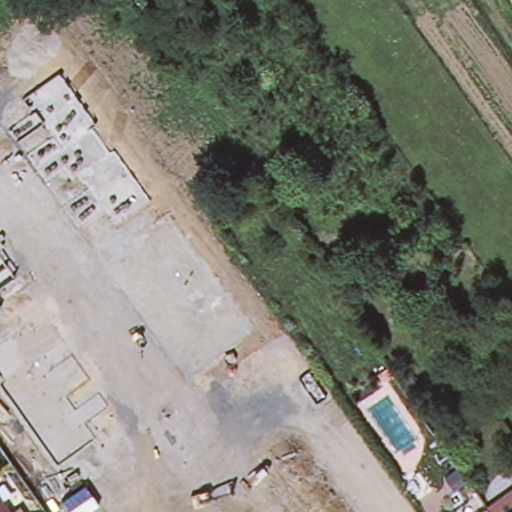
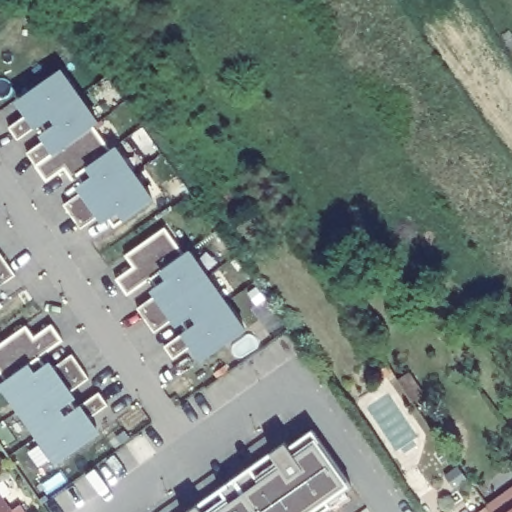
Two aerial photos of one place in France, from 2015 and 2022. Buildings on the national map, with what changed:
new [(109,217),(100,223),(97,215),(79,229),(63,206),(80,194),(77,188),(84,182),(78,174),(71,179),(64,168),(45,181),(27,152),(45,141),(35,127),(17,139),(10,127),(27,116),(15,100),(62,69),(99,122),(116,146),(153,199),(122,220),(115,227),(109,217)]
new [(164,347),(181,335),(190,328),(183,318),(173,326),(170,320),(153,331),(138,309),(155,297),(150,291),(158,287),(152,277),(127,296),(118,282),(137,270),(127,256),(166,227),(184,254),(192,249),(245,331),(200,362),(189,347),(173,358),(164,347)]
new [(0,290),(0,255),(16,278),(0,290)]
new [(0,297),(0,290),(3,295),(0,297)]
new [(0,308),(0,300),(3,305),(0,308)]
new [(0,384),(7,380),(0,371),(0,345),(27,326),(33,337),(51,325),(62,341),(39,357),(45,366),(51,360),(55,366),(72,356),(88,378),(72,391),(77,397),(82,405),(100,392),(108,405),(91,417),(101,432),(55,464),(0,387),(0,384)]
new [(197,505),(272,453),(285,442),(288,447),(312,431),(318,440),(350,484),(327,499),(331,506),(323,512),(186,512),(197,505)]
unchanged [(491,507),(512,492),(512,512),(484,512),(491,507)]
unchanged [(0,500),(8,512),(0,512),(0,500)]

